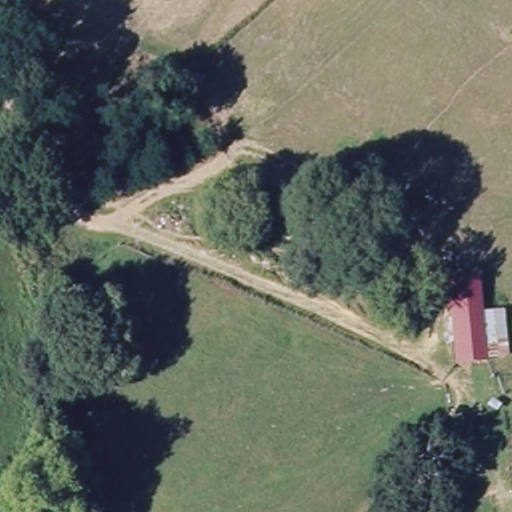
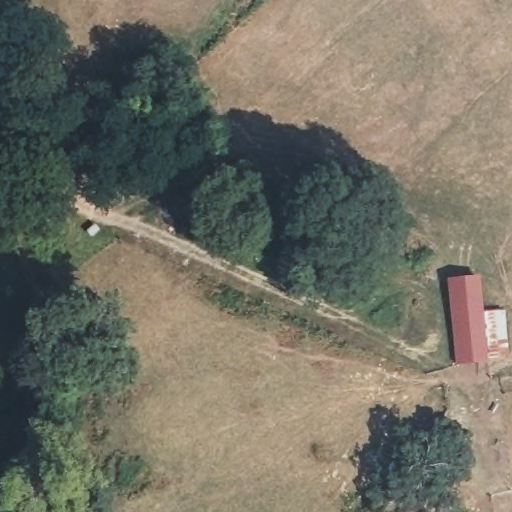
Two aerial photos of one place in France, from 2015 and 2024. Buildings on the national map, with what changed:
unchanged [(458,364),(452,291),(484,289),(487,362),(458,364)]
unchanged [(506,309),(510,357),(487,358),(485,312),(506,309)]

